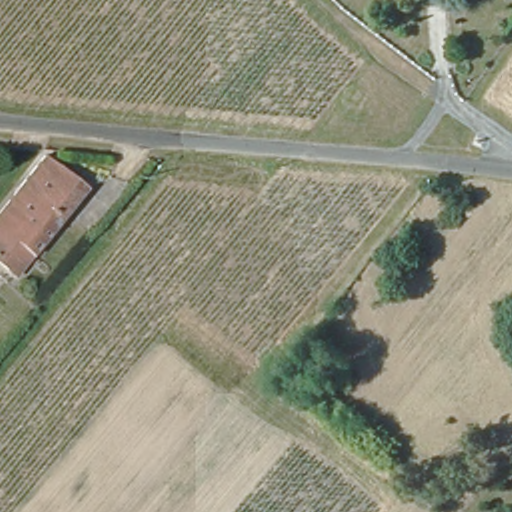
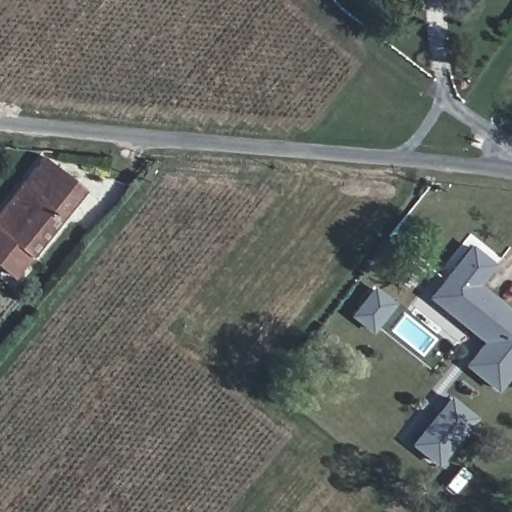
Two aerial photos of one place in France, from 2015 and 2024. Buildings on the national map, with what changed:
unchanged [(41,165),(81,195),(9,281),(0,272),(0,213),(41,165)]
new [(482,284),(512,308),(512,375),(498,392),(466,367),(484,342),(429,297),(474,245),(497,263),(482,284)]
new [(478,417),(440,466),(414,447),(452,396),(478,417)]

